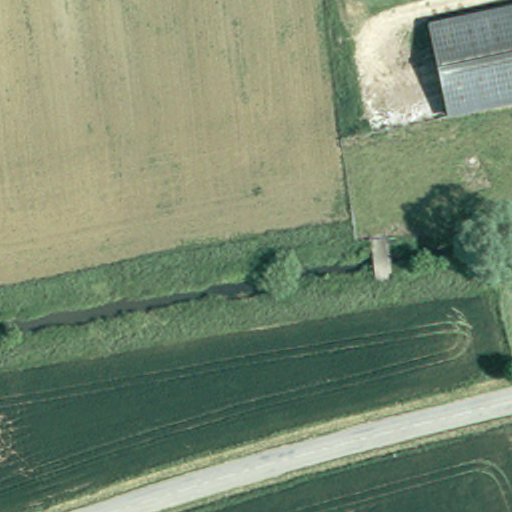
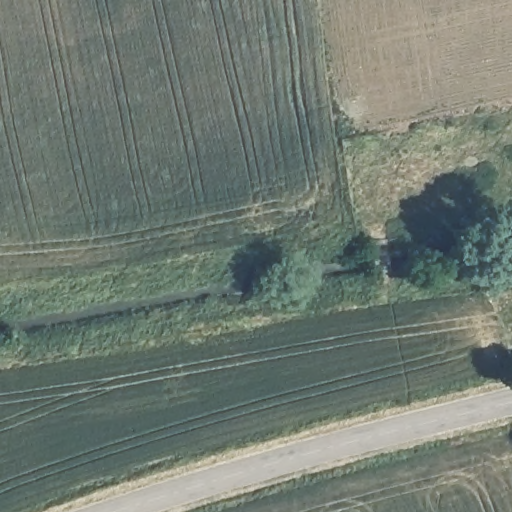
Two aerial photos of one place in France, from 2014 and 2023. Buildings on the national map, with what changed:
demolished [(512,21),(512,87),(444,92),(438,27),(512,21)]

